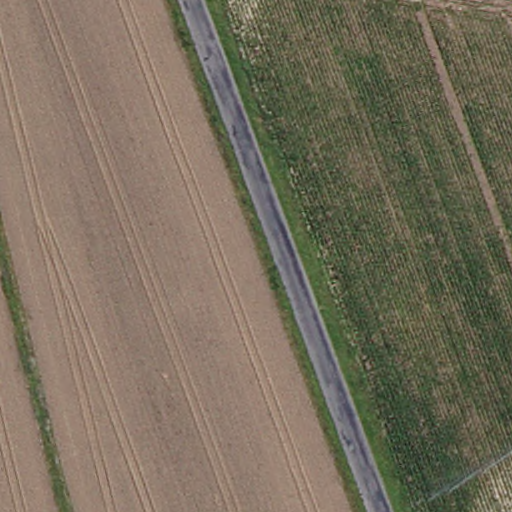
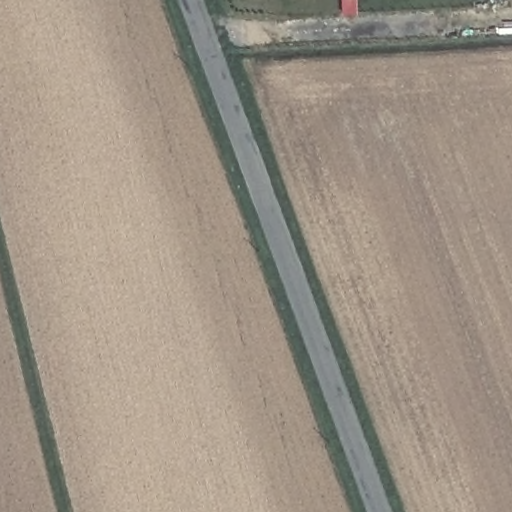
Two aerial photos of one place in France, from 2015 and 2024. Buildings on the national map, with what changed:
[]

